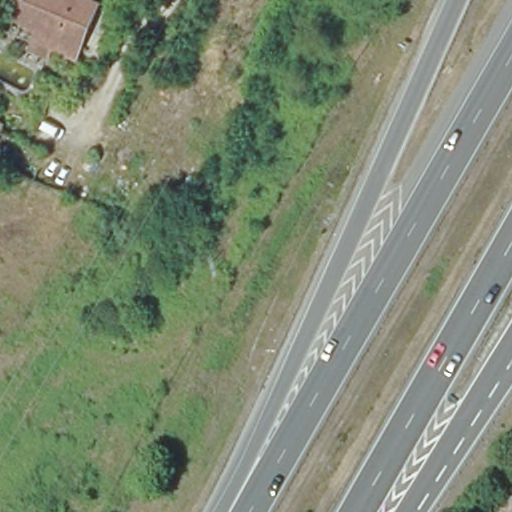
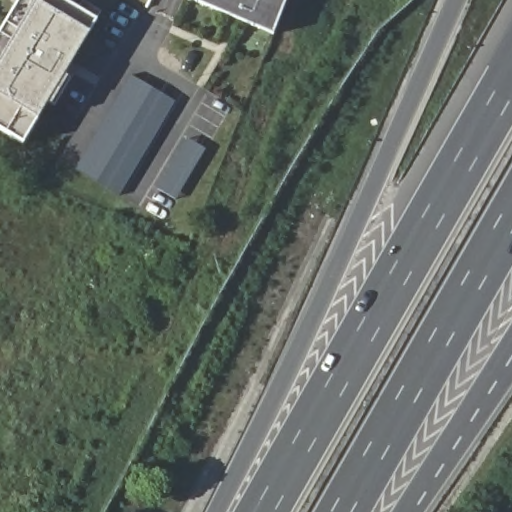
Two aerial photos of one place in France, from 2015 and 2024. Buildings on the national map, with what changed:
new [(39,118),(24,143),(0,129),(0,32),(19,0),(66,0),(98,20),(90,33),(39,118)]
demolished [(95,42),(66,30),(61,42),(40,34),(45,22),(21,12),(26,0),(111,0),(95,42)]
new [(274,34),(196,0),(287,0),(274,34)]
new [(133,72),(155,86),(177,99),(119,192),(76,166),(123,88),(133,72)]
demolished [(25,107),(37,112),(46,90),(70,100),(106,113),(81,174),(46,159),(52,145),(16,130),(25,107)]
new [(176,197),(158,186),(189,135),(207,146),(176,197)]
demolished [(495,512),(512,485),(512,512),(495,512)]

